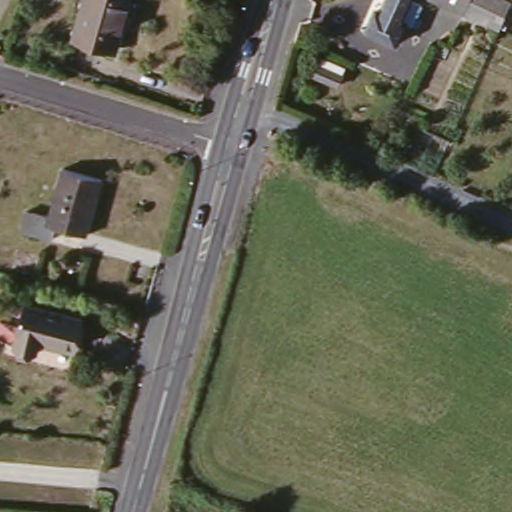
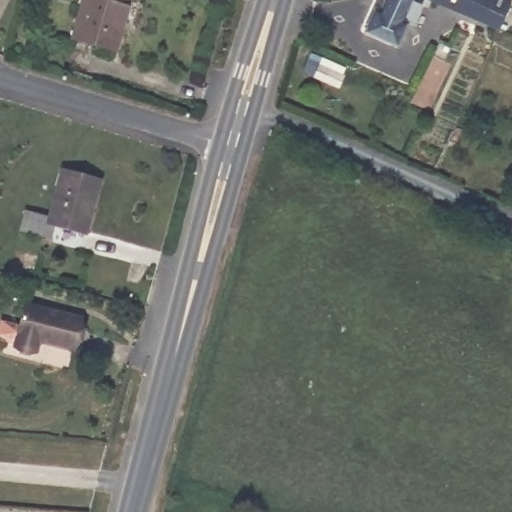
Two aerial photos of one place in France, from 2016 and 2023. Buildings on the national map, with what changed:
unchanged [(127,0),(115,46),(72,34),(80,0),(127,0)]
unchanged [(406,14),(396,34),(365,20),(373,2),(381,4),(383,0),(404,0),(398,11),(406,14)]
unchanged [(461,0),(507,0),(511,1),(499,29),(430,0),(453,0),(460,3),(461,0)]
unchanged [(453,0),(461,0),(460,3),(453,0)]
unchanged [(318,58),(337,67),(332,77),(313,68),(318,58)]
unchanged [(22,222),(27,200),(50,206),(62,160),(102,170),(89,219),(60,213),(55,229),(22,222)]
unchanged [(78,313),(74,347),(36,342),(34,353),(12,349),(19,304),(78,313)]

